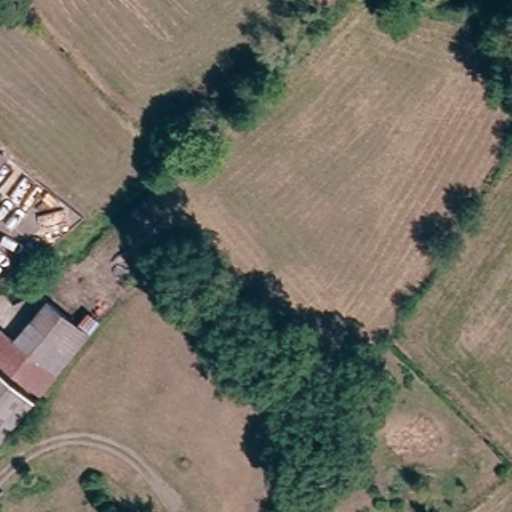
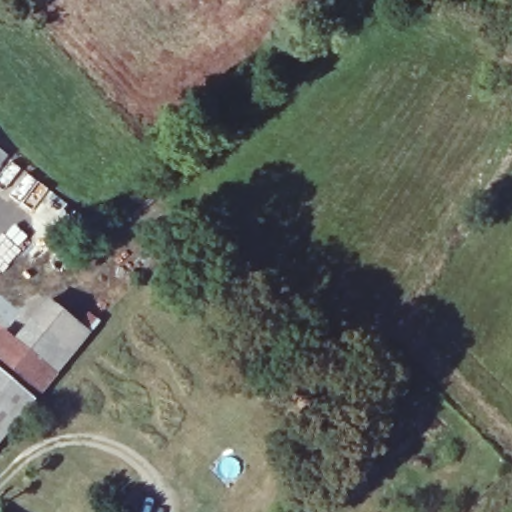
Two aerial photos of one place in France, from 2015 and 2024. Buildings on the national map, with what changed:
unchanged [(0,167),(0,150),(8,158),(0,167)]
unchanged [(100,327),(53,387),(0,351),(0,341),(11,325),(27,335),(52,298),(100,327)]
unchanged [(39,405),(0,451),(0,362),(44,399),(39,405)]

